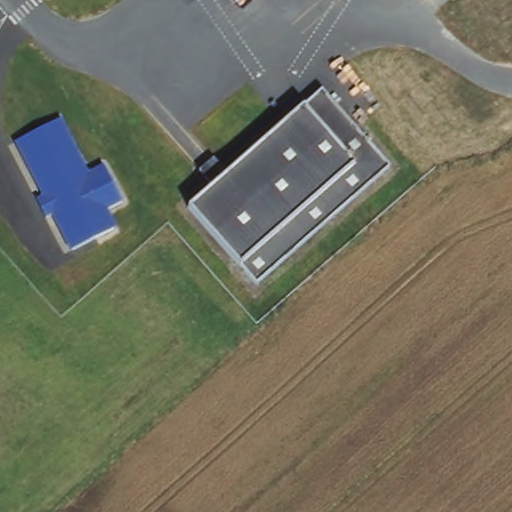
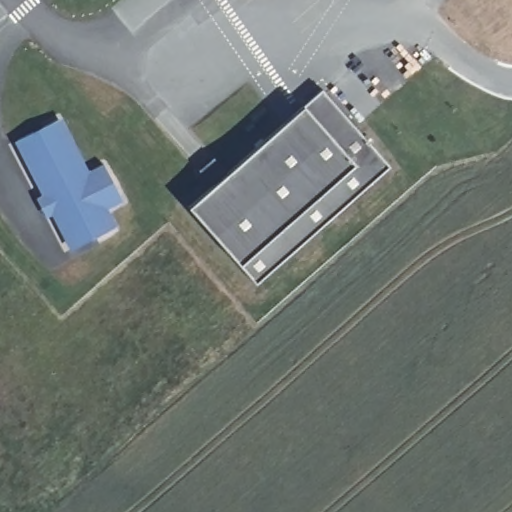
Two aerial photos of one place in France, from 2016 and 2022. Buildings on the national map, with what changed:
unchanged [(212,181),(206,175),(198,166),(213,153),(219,160),(226,169),(321,85),(347,115),(389,162),(256,281),(235,257),(187,202),(212,181)]
unchanged [(42,223),(50,219),(15,147),(44,133),(63,124),(86,169),(88,172),(105,166),(125,205),(107,214),(115,231),(67,254),(59,237),(52,242),(42,223)]

